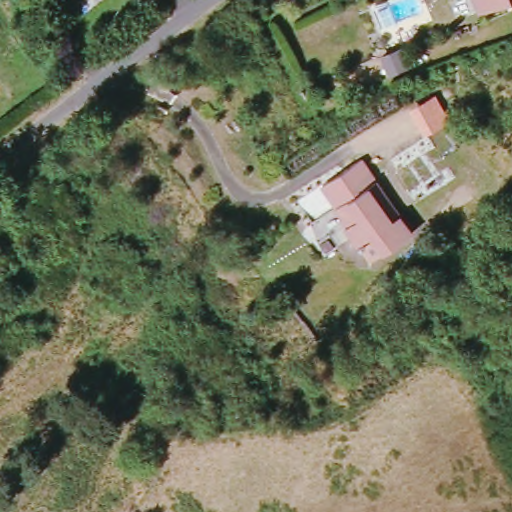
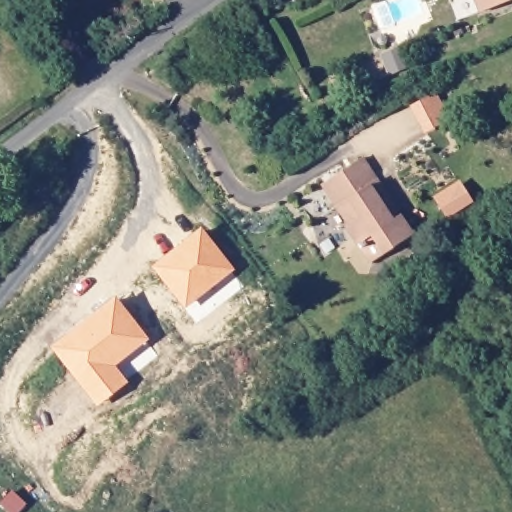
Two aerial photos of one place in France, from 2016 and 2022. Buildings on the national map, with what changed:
unchanged [(484,12),(478,0),(512,0),(512,1),(484,12)]
unchanged [(0,90),(0,81),(4,87),(0,90)]
unchanged [(354,164),(375,154),(399,197),(384,206),(391,220),(407,213),(418,231),(393,244),(354,164)]
unchanged [(393,244),(374,254),(367,240),(364,241),(352,219),(361,213),(352,195),(348,197),(334,174),(354,164),(393,244)]
new [(201,232),(231,269),(188,305),(158,265),(201,232)]
new [(99,404),(86,386),(56,346),(115,300),(146,339),(111,367),(125,384),(99,404)]

